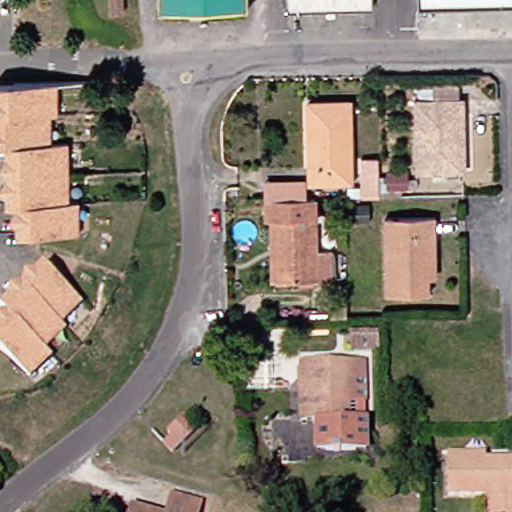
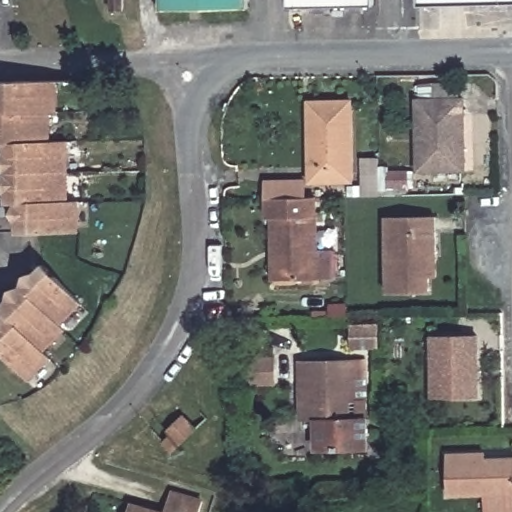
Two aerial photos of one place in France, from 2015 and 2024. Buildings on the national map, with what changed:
unchanged [(123,0),(124,9),(120,9),(112,9),(111,0),(123,0)]
unchanged [(150,0),(238,0),(238,13),(150,14),(150,0)]
unchanged [(288,0),(373,0),(373,6),(288,7),(288,0)]
unchanged [(409,0),(512,0),(512,3),(409,5),(409,0)]
unchanged [(41,113),(41,141),(58,141),(59,201),(69,201),(69,232),(19,233),(18,202),(11,202),(10,142),(0,142),(0,95),(9,95),(9,81),(47,81),(47,113),(41,113)]
unchanged [(460,170),(413,171),(412,100),(458,99),(460,170)]
unchanged [(343,181),(300,182),(299,126),(304,126),(303,102),(341,101),(343,181)]
new [(378,159),(379,194),(361,195),(361,159),(378,159)]
unchanged [(308,250),(321,250),(322,279),(273,279),(273,250),(263,250),(263,219),(257,219),(257,198),(257,182),(295,181),(296,197),(306,197),(308,250)]
unchanged [(431,243),(425,243),(425,277),(425,292),(382,292),(380,218),(431,217),(431,243)]
unchanged [(72,302),(51,324),(56,328),(35,350),(42,357),(20,379),(0,360),(0,329),(17,312),(9,305),(41,272),(72,302)]
new [(432,336),(477,336),(477,397),(442,397),(432,397),(432,382),(432,336)]
unchanged [(317,439),(317,418),(301,419),(301,391),(309,391),(309,362),(365,361),(366,390),(349,390),(349,418),(366,417),(367,438),(367,448),(357,448),(327,449),(317,449),(317,439)]
unchanged [(196,429),(173,451),(165,442),(173,435),(169,431),(185,416),(196,429)]
unchanged [(507,458),(507,464),(512,464),(512,500),(510,500),(510,512),(476,512),(475,494),(439,495),(437,454),(462,453),(462,459),(475,459),(507,458)]
unchanged [(190,512),(156,512),(161,492),(193,501),(190,512)]
unchanged [(121,504),(149,512),(119,512),(121,504)]

